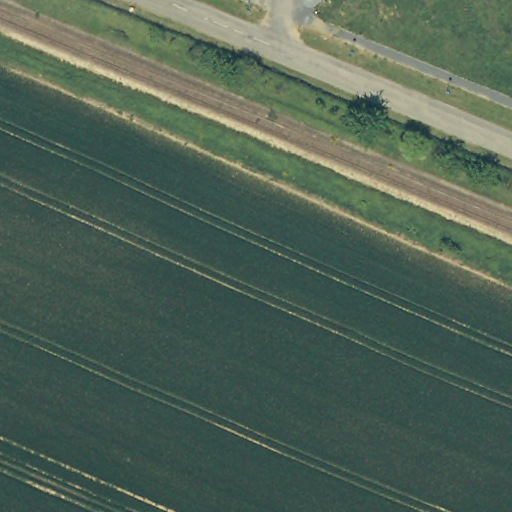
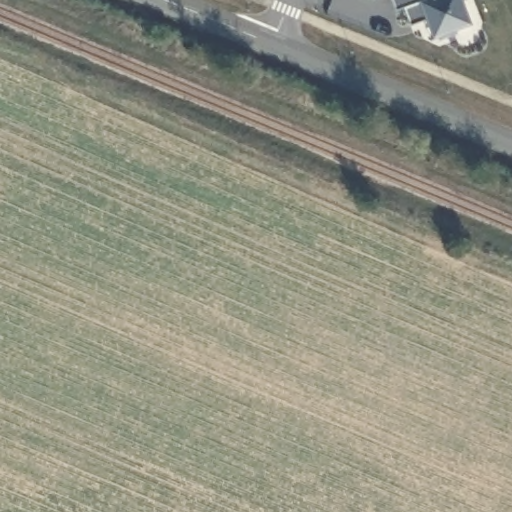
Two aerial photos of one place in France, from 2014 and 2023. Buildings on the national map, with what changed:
new [(462,1),(471,24),(454,30),(456,33),(438,40),(437,36),(433,37),(427,21),(410,26),(404,7),(395,11),(392,0),(463,0),(462,1)]

